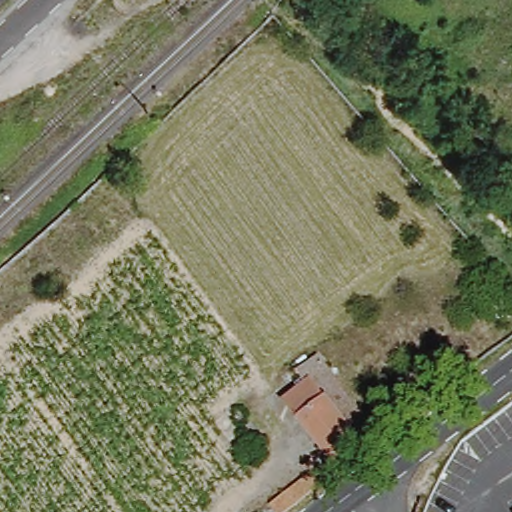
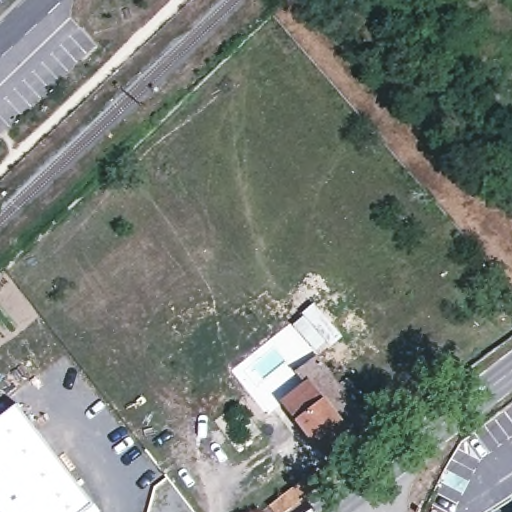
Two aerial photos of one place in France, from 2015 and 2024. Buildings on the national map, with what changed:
unchanged [(287,383),(275,371),(298,352),(367,437),(347,452),(292,379),(287,383)]
unchanged [(287,383),(292,379),(347,452),(322,471),(265,398),(287,383)]
new [(87,495),(95,507),(90,512),(0,512),(0,420),(19,407),(87,495)]

